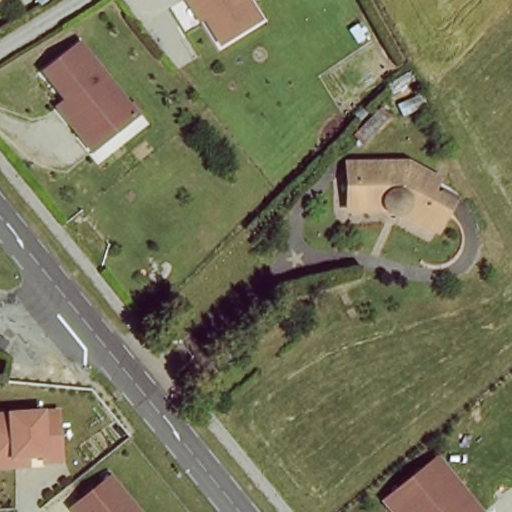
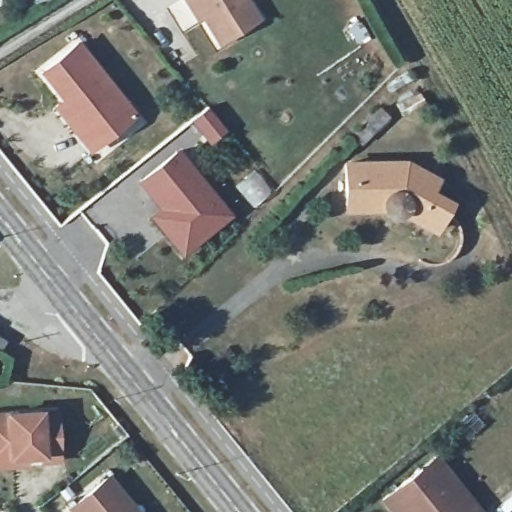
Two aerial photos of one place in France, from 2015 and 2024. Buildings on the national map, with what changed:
unchanged [(184,0),(187,0),(185,1),(184,0)]
unchanged [(218,46),(190,0),(244,0),(258,22),(218,46)]
unchanged [(55,110),(65,103),(41,74),(78,46),(128,107),(131,105),(138,113),(100,141),(88,150),(55,110)]
new [(178,151),(231,215),(182,256),(149,217),(159,210),(137,183),(178,151)]
unchanged [(441,181),(434,194),(453,204),(441,227),(415,212),(403,216),(392,210),(352,210),(350,166),(410,164),(441,181)]
unchanged [(5,342),(1,351),(0,350),(0,338),(5,342)]
unchanged [(48,414),(51,462),(35,463),(34,457),(0,459),(0,417),(48,414)]
unchanged [(383,502),(420,472),(430,483),(438,477),(450,491),(457,486),(479,512),(391,512),(383,502)]
unchanged [(67,509),(105,477),(117,492),(109,499),(120,512),(70,512),(67,509)]

